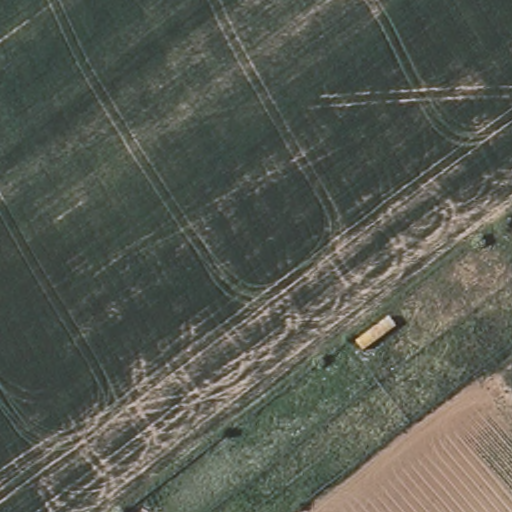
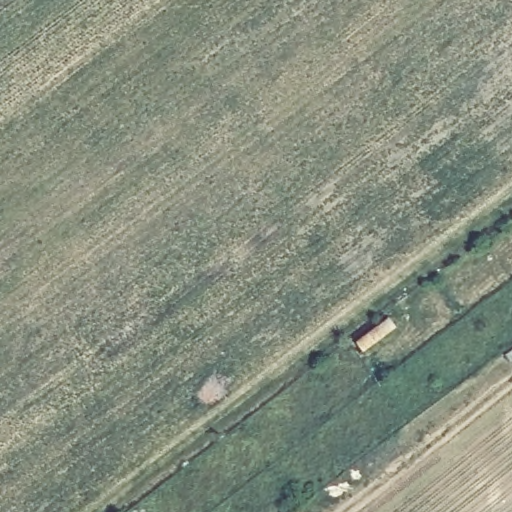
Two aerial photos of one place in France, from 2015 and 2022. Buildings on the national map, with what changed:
unchanged [(115,502),(123,512),(102,512),(115,502)]

